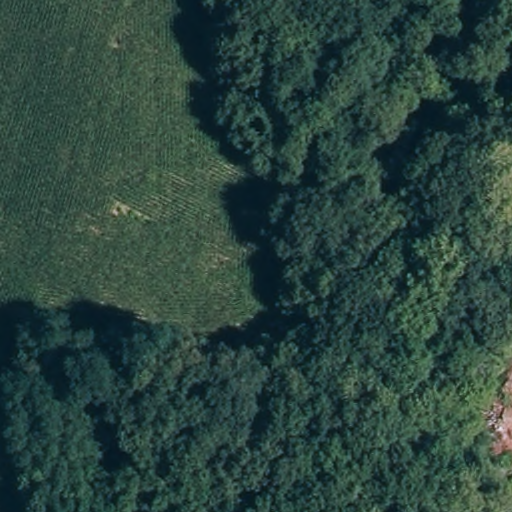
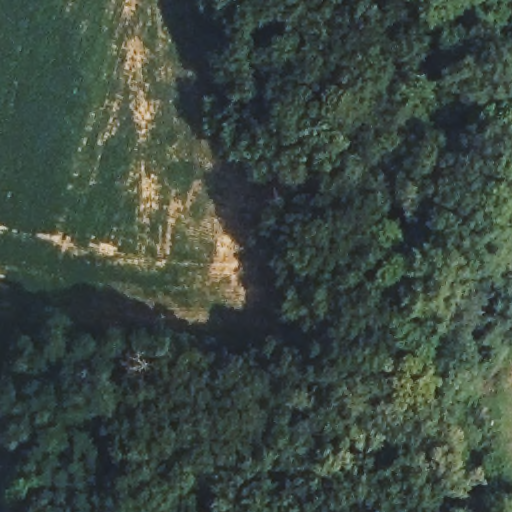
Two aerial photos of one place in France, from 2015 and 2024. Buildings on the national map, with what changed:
[]

